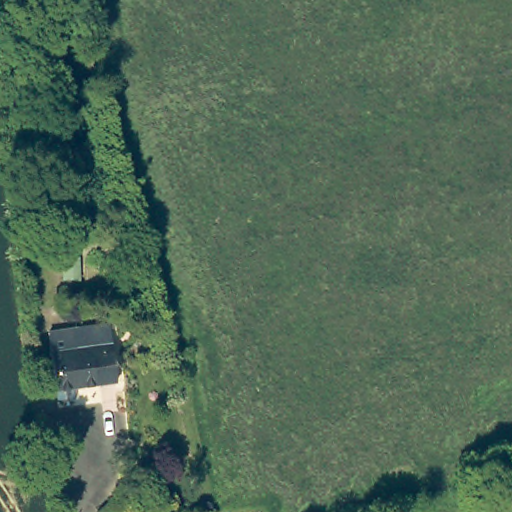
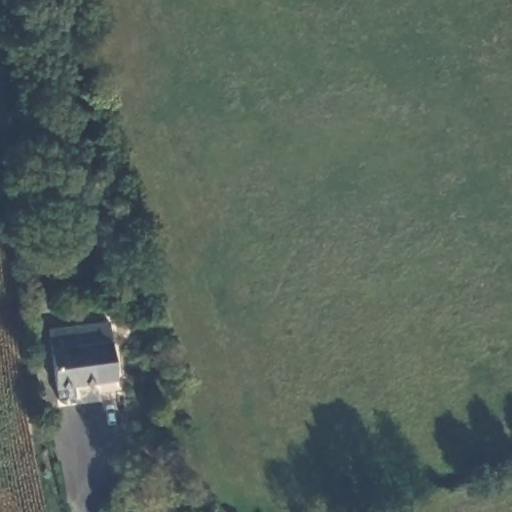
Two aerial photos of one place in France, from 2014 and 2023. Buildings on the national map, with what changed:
unchanged [(114,379),(52,385),(47,330),(109,323),(114,379)]

